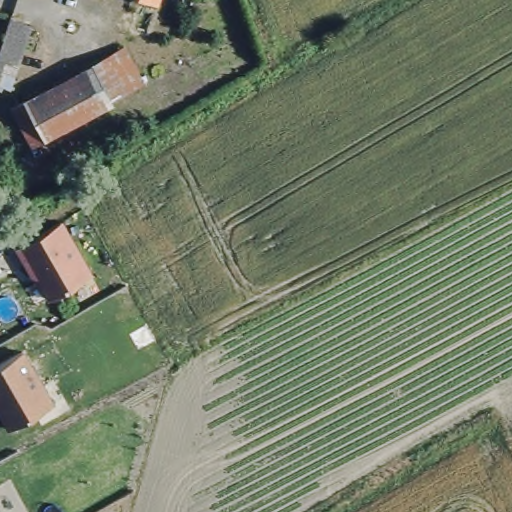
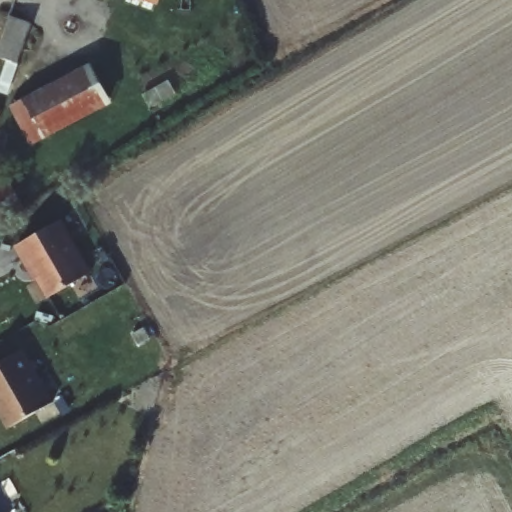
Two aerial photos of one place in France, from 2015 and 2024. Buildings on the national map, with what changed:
unchanged [(138,0),(163,0),(160,9),(138,0)]
unchanged [(182,13),(183,0),(194,0),(193,14),(182,13)]
unchanged [(30,18),(17,54),(3,51),(0,59),(0,37),(10,9),(30,18)]
unchanged [(5,108),(107,55),(122,48),(141,86),(125,94),(25,145),(5,108)]
unchanged [(0,223),(0,186),(10,180),(27,208),(0,223)]
unchanged [(37,262),(35,264),(22,241),(65,216),(96,269),(55,293),(37,262)]
unchanged [(9,419),(0,404),(0,398),(0,353),(22,340),(53,394),(9,419)]
unchanged [(0,512),(0,507),(3,512),(0,512)]

